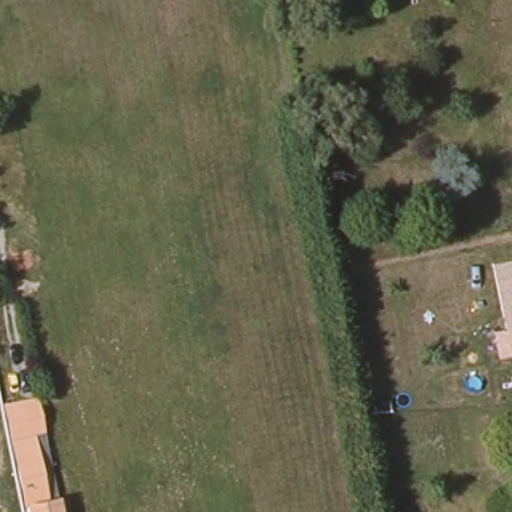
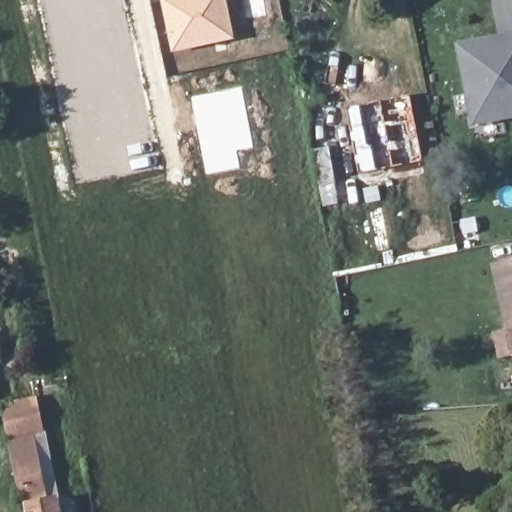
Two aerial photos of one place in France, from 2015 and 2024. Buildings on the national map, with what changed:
new [(172,54),(161,0),(226,0),(235,39),(172,54)]
new [(471,128),(454,43),(512,33),(512,120),(471,128)]
new [(242,86),(254,148),(236,151),(240,171),(206,177),(192,96),(242,86)]
unchanged [(512,263),(512,329),(505,331),(490,268),(512,263)]
new [(505,331),(512,329),(512,355),(498,358),(493,333),(505,331)]
unchanged [(27,508),(4,404),(37,398),(43,433),(57,497),(62,512),(28,512),(27,508)]

